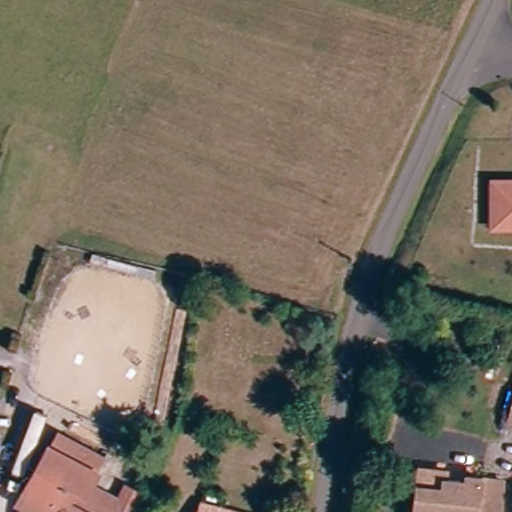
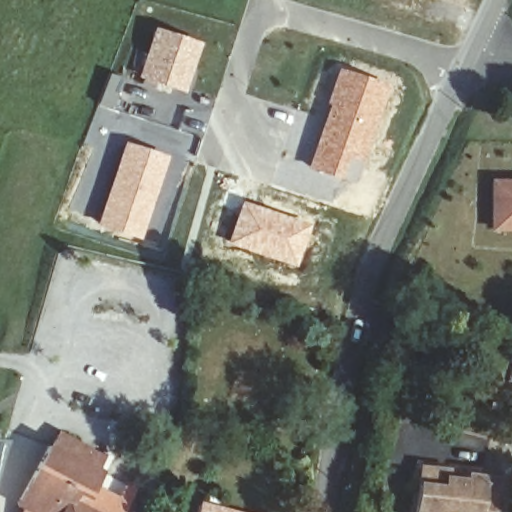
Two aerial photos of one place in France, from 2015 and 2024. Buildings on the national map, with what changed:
new [(152,26),(200,41),(183,93),(135,76),(152,26)]
new [(335,66),(387,83),(361,164),(354,162),(354,164),(349,162),(343,180),(306,169),(335,66)]
new [(122,140),(168,154),(142,240),(96,225),(122,140)]
unchanged [(486,190),(512,190),(512,238),(484,238),(486,190)]
new [(240,200),(308,221),(293,267),(225,243),(240,200)]
unchanged [(512,402),(512,429),(507,428),(512,402)]
unchanged [(41,512),(17,502),(51,431),(73,442),(94,452),(86,471),(82,481),(119,500),(124,492),(138,499),(131,512),(41,512)]
unchanged [(423,478),(450,482),(449,491),(466,494),(469,487),(505,493),(502,512),(418,512),(423,478)]
unchanged [(201,505),(231,512),(199,512),(201,505)]

